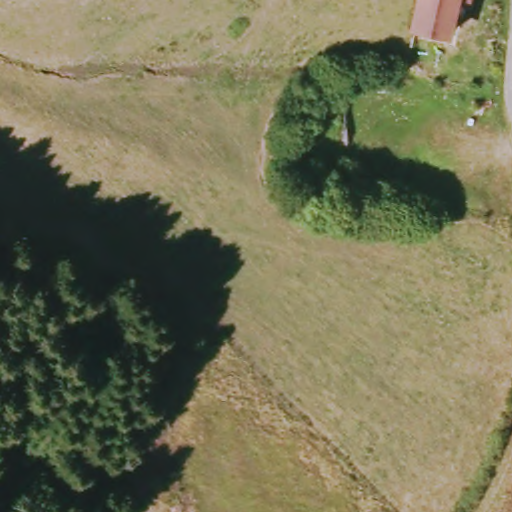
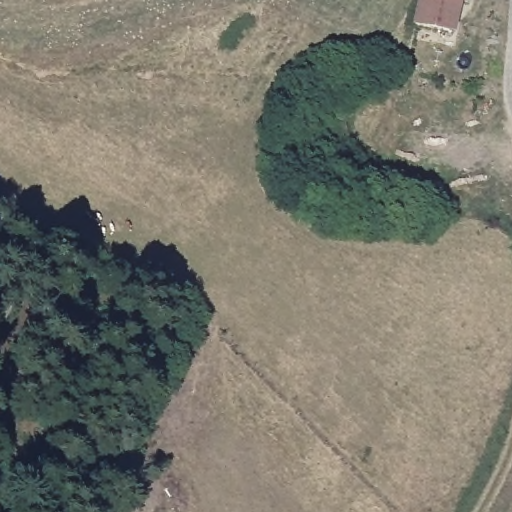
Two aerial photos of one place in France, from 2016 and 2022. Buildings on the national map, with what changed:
unchanged [(423,0),(460,0),(457,33),(419,27),(423,0)]

